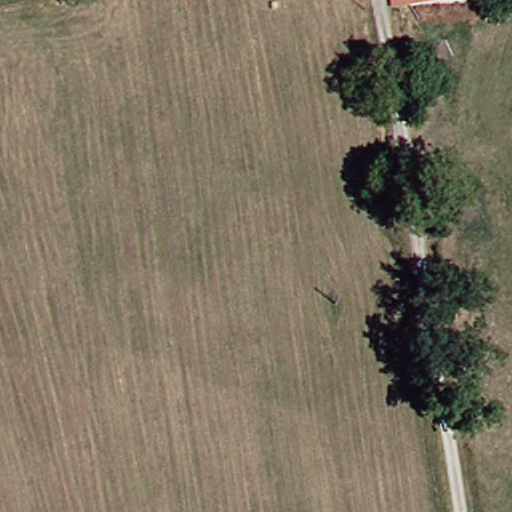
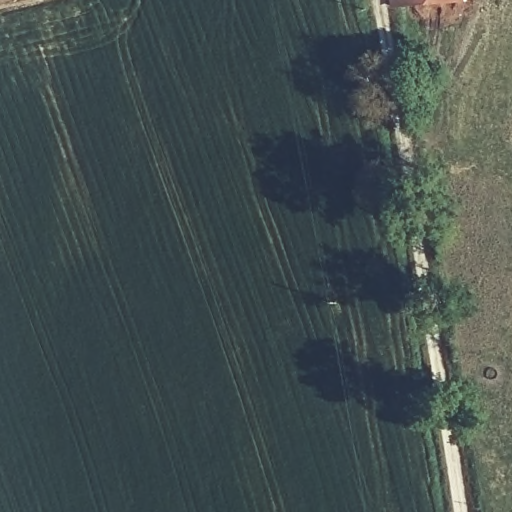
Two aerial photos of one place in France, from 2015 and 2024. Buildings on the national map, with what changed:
unchanged [(381,12),(380,0),(456,0),(456,5),(389,12),(381,12)]

